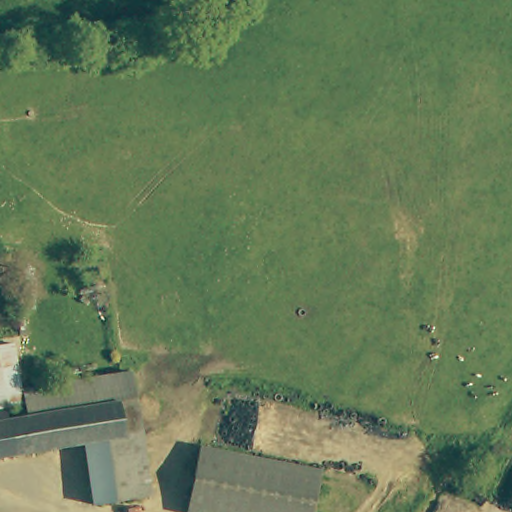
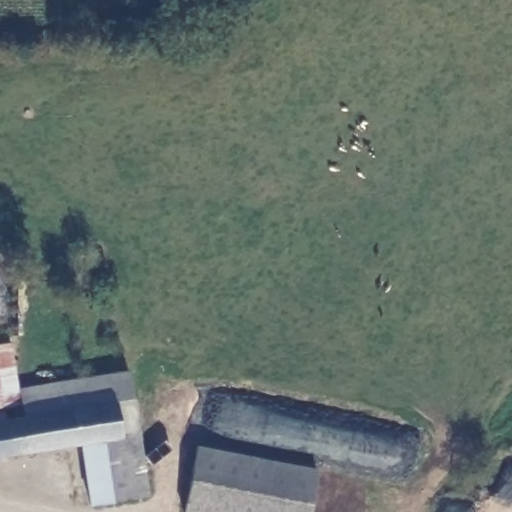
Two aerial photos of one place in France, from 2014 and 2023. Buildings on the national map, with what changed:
unchanged [(0,398),(0,338),(7,337),(15,396),(0,398)]
unchanged [(122,436),(117,400),(22,414),(17,388),(125,372),(135,434),(122,436)]
unchanged [(117,400),(122,436),(74,444),(0,455),(0,417),(22,414),(117,400)]
unchanged [(87,505),(74,444),(122,436),(135,434),(145,499),(132,500),(87,505)]
unchanged [(178,512),(190,446),(312,470),(305,512),(178,512)]

